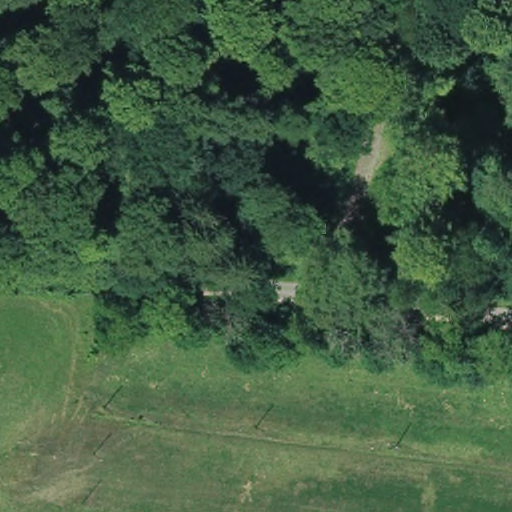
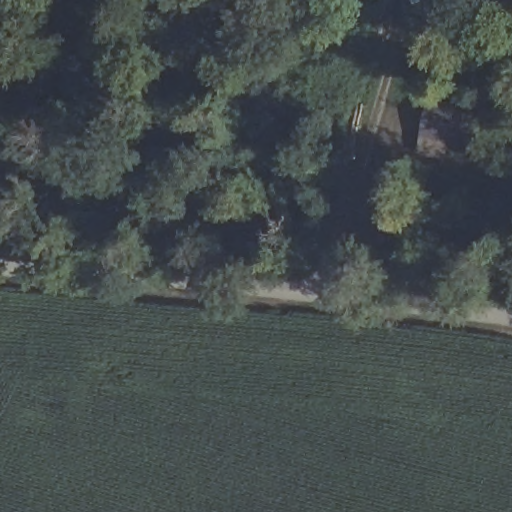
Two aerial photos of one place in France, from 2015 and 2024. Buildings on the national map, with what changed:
unchanged [(498,120),(492,150),(442,135),(453,110),(498,120)]

